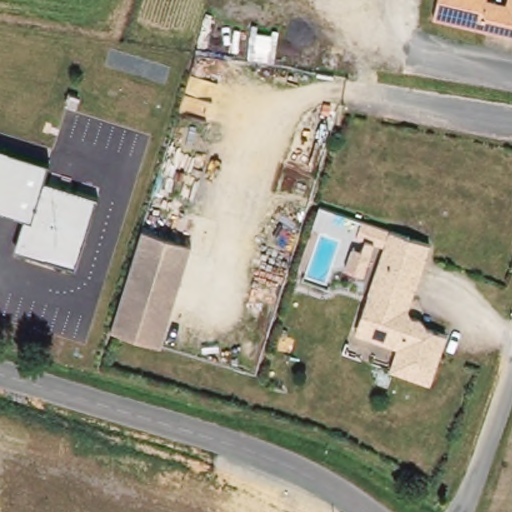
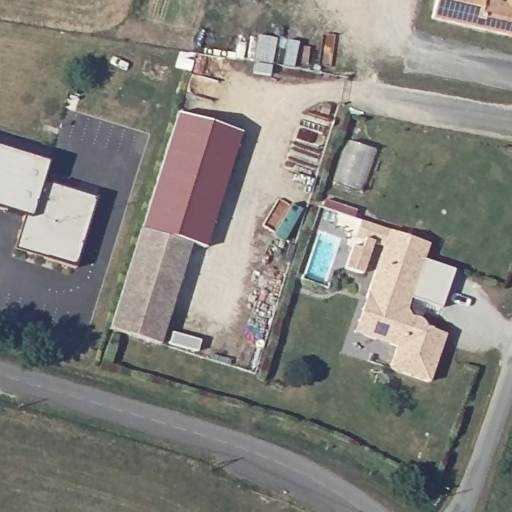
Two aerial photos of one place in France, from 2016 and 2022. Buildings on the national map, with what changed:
unchanged [(441,0),(512,0),(512,31),(437,17),(441,0)]
new [(179,112),(243,134),(207,250),(191,244),(190,247),(140,231),(179,112)]
unchanged [(26,215),(0,207),(0,148),(49,163),(43,182),(96,198),(75,269),(16,248),(26,215)]
new [(387,247),(375,242),(363,273),(345,268),(353,245),(362,221),(392,231),(387,247)]
unchanged [(371,295),(393,228),(433,241),(410,307),(415,315),(419,315),(423,317),(426,319),(429,325),(450,332),(433,380),(394,366),(401,344),(369,333),(359,330),(371,295)]
unchanged [(140,232),(190,247),(159,347),(110,332),(109,332),(140,231),(140,232)]

